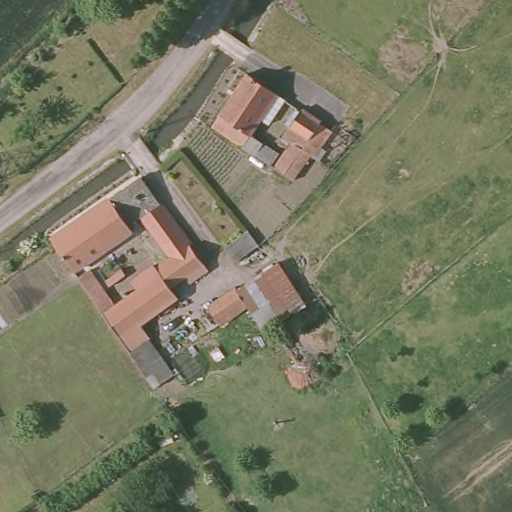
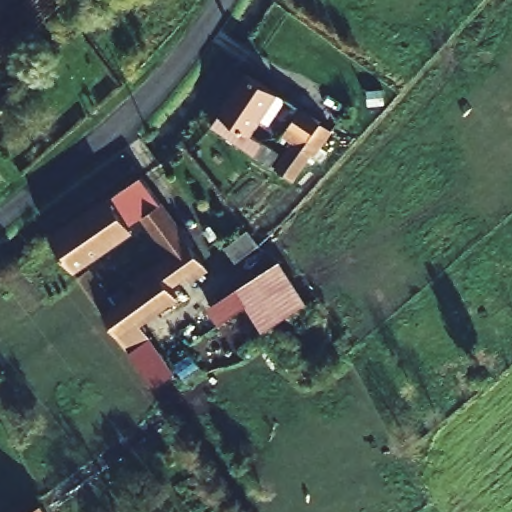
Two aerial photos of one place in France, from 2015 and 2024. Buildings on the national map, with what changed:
unchanged [(244,151),(212,130),(249,76),(280,98),(244,151)]
unchanged [(330,134),(312,159),(303,154),(285,180),(274,172),(292,148),(282,141),(300,113),(330,134)]
unchanged [(72,276),(69,271),(80,264),(103,297),(118,287),(124,294),(133,287),(127,278),(149,264),(155,270),(167,263),(134,216),(75,259),(57,235),(115,191),(122,198),(140,183),(169,223),(177,234),(199,266),(169,289),(175,299),(137,325),(146,339),(125,354),(72,276)]
unchanged [(277,264),(305,305),(263,332),(245,309),(217,328),(208,309),(277,264)]
unchanged [(44,512),(29,512),(40,504),(44,512)]

